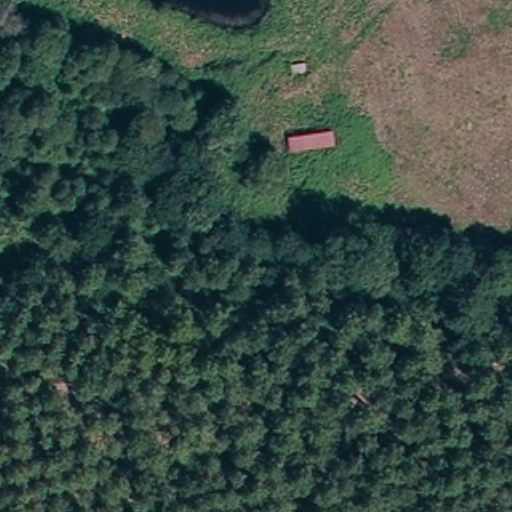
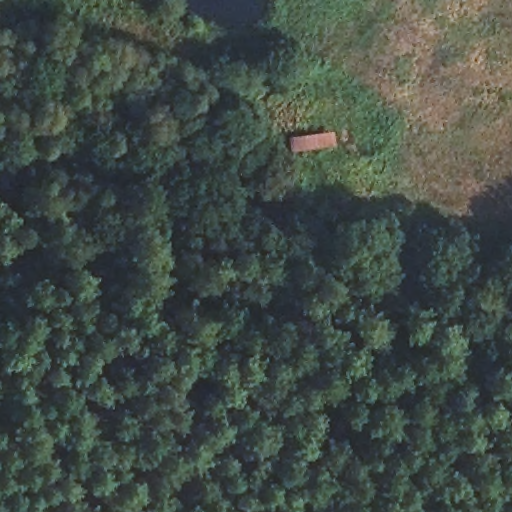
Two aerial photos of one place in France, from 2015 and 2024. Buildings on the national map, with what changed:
unchanged [(428,232),(424,260),(396,256),(399,229),(428,232)]

